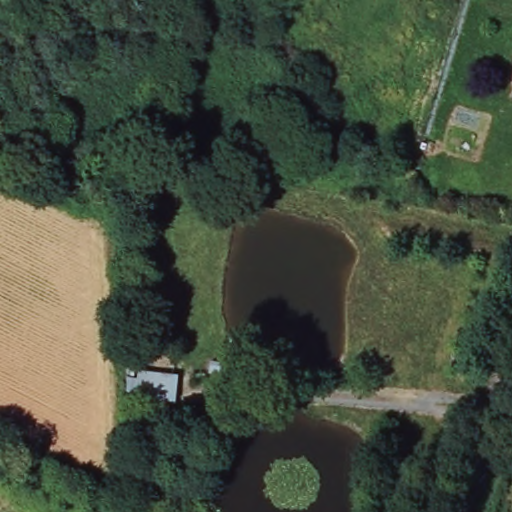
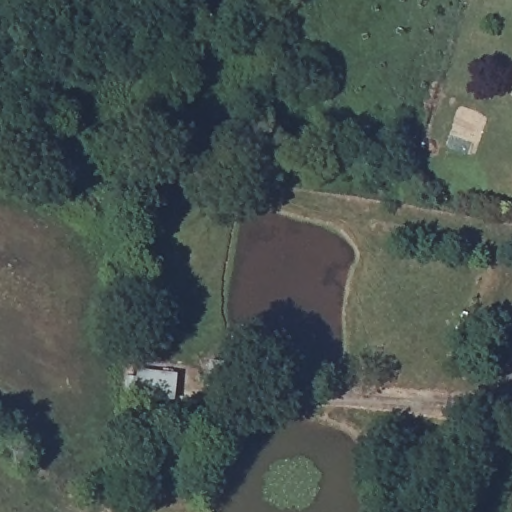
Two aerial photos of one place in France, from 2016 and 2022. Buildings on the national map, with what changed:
unchanged [(133,369),(172,374),(171,397),(131,397),(133,369)]

